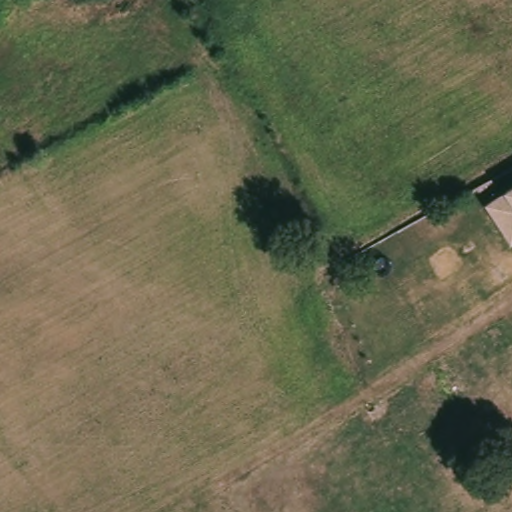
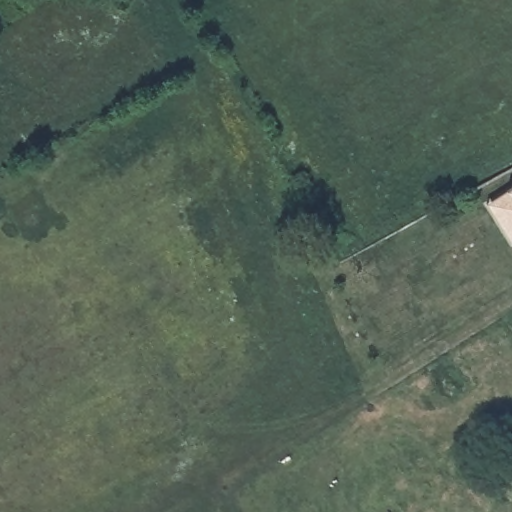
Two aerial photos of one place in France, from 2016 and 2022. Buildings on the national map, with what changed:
unchanged [(488,202),(508,189),(512,187),(512,241),(488,202)]

